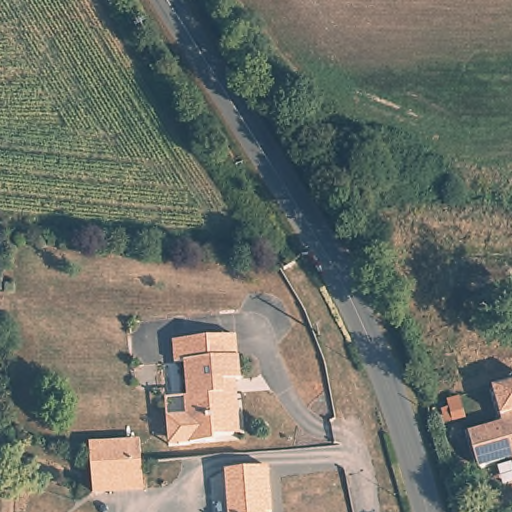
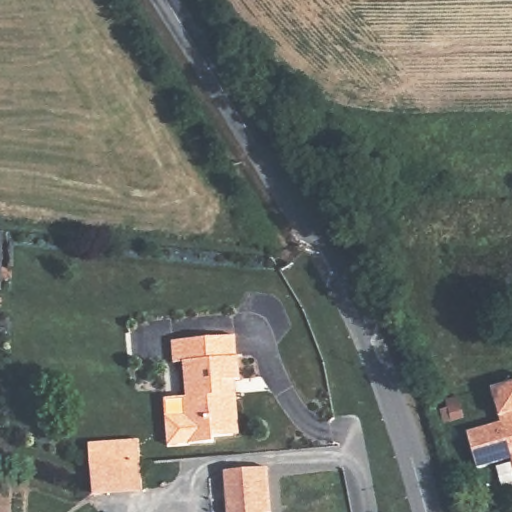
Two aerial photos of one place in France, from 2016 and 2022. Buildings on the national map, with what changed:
unchanged [(188,408),(188,393),(191,393),(190,362),(182,361),(182,351),(182,336),(224,336),(244,336),(244,341),(244,358),(244,379),(244,433),(237,433),(217,433),(217,438),(181,438),(171,438),(171,408),(188,408)]
unchanged [(512,461),(487,468),(476,429),(511,420),(509,412),(512,411),(512,461)]
unchanged [(93,496),(93,471),(91,457),(90,449),(91,449),(128,446),(140,445),(142,468),(142,493),(93,496)]
unchanged [(273,510),(266,511),(267,512),(230,512),(226,471),(269,467),(273,510)]

